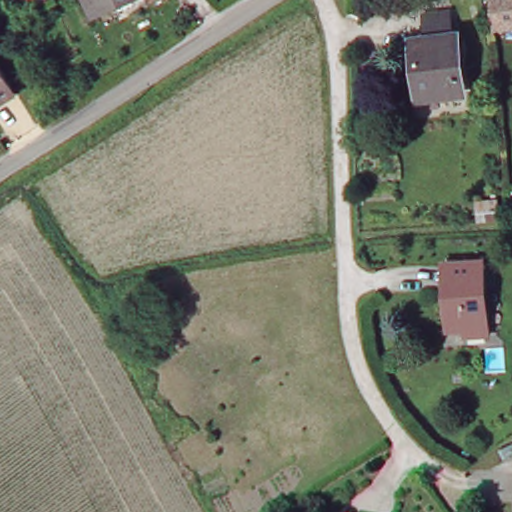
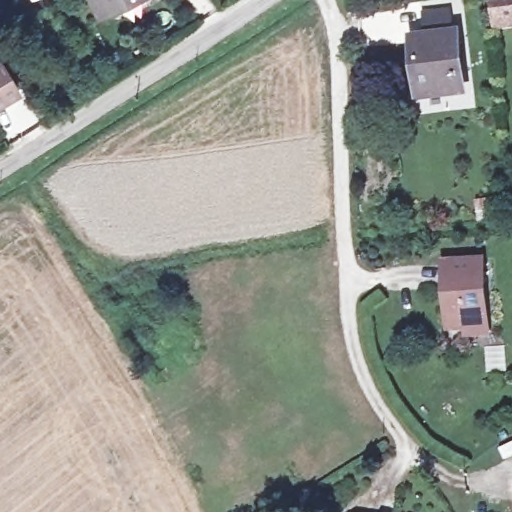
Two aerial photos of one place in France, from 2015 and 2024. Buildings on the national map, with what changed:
unchanged [(92,0),(111,0),(95,7),(92,0)]
unchanged [(501,31),(499,0),(512,0),(512,30),(501,31)]
unchanged [(451,101),(411,103),(408,56),(420,55),(420,29),(446,29),(447,55),(449,55),(451,101)]
unchanged [(0,61),(2,60),(16,86),(0,95),(0,61)]
unchanged [(445,269),(482,268),(484,331),(448,332),(445,269)]

